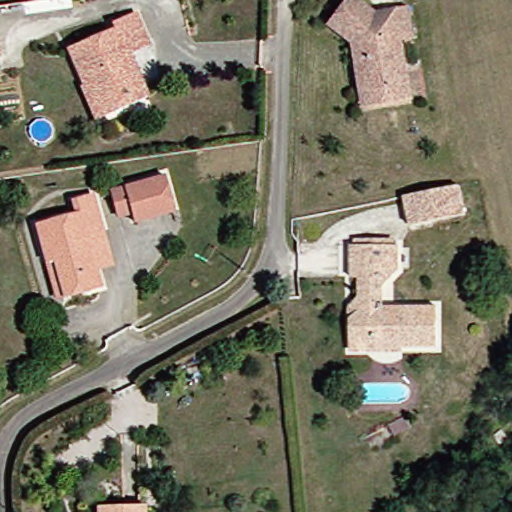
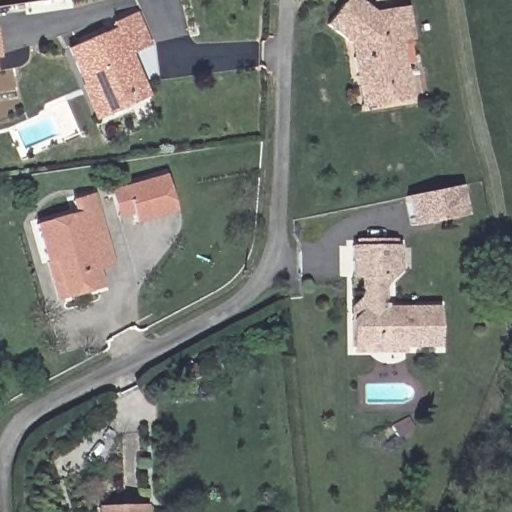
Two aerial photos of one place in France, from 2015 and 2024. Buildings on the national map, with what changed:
unchanged [(347,83),(344,53),(343,40),(317,13),(331,0),(360,0),(371,11),(405,9),(408,40),(395,41),(400,99),(378,101),(349,103),(347,83)]
unchanged [(80,83),(67,49),(67,46),(113,28),(110,22),(134,12),(147,41),(127,50),(140,82),(145,94),(125,102),(104,111),(94,115),(80,83)]
unchanged [(103,189),(110,188),(118,186),(156,173),(167,210),(130,223),(126,214),(112,219),(103,189)]
unchanged [(467,221),(413,228),(409,199),(441,194),(463,191),(467,221)]
unchanged [(35,259),(24,223),(66,210),(63,199),(82,193),(84,193),(94,228),(104,262),(87,267),(92,285),(60,295),(46,299),(35,259)]
unchanged [(345,347),(347,306),(356,307),(359,281),(351,279),(354,245),(360,245),(360,240),(395,242),(395,247),(398,247),(398,276),(379,276),(376,308),(429,312),(427,353),(390,351),(369,349),(345,347)]
unchanged [(395,421),(400,432),(384,439),(379,428),(395,421)]
unchanged [(148,503),(149,512),(100,512),(100,505),(148,503)]

